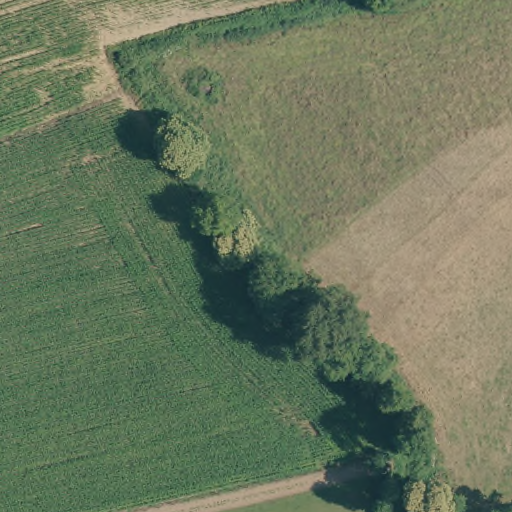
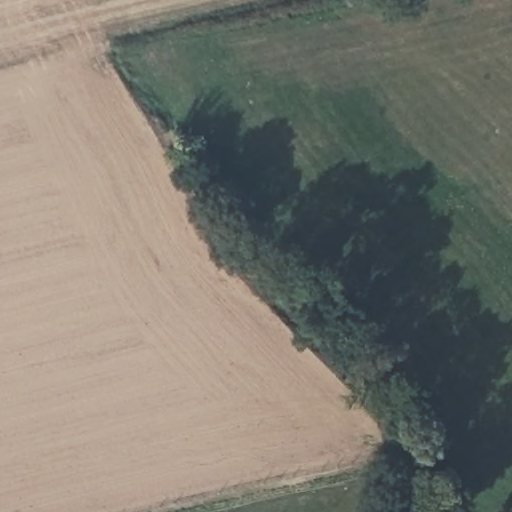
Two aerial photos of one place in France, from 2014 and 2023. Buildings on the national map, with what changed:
[]

